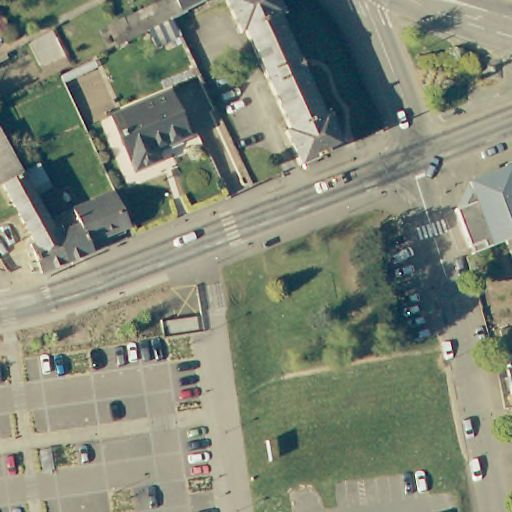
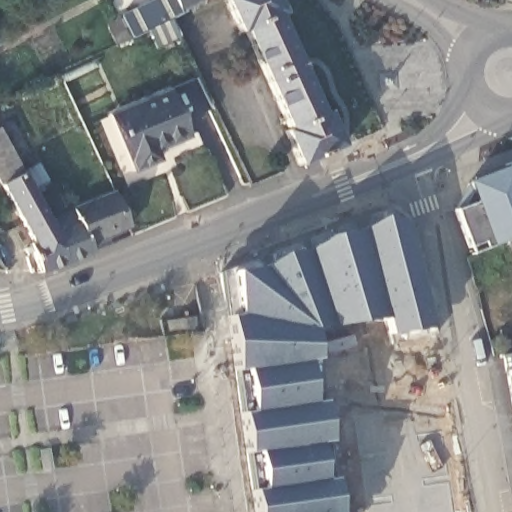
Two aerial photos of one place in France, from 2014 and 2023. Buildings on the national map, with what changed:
unchanged [(160,0),(199,0),(168,15),(113,43),(105,27),(160,0)]
unchanged [(283,116),(243,26),(239,28),(225,0),(276,0),(280,10),(275,13),(320,110),(325,109),(342,143),(299,163),(280,118),(283,116)]
unchanged [(168,90),(187,134),(155,149),(159,159),(135,169),(111,115),(168,90)]
unchanged [(32,246),(37,244),(0,172),(0,121),(51,218),(59,233),(65,248),(70,264),(45,274),(32,246)]
unchanged [(470,249),(454,200),(466,180),(502,166),(501,162),(512,158),(512,253),(505,235),(470,249)]
unchanged [(59,233),(51,218),(57,215),(59,219),(80,210),(80,209),(120,193),(136,229),(104,242),(101,237),(92,241),(97,254),(70,264),(65,248),(59,233)]
new [(306,254),(333,239),(362,232),(381,220),(403,225),(413,267),(417,280),(433,342),(392,348),(385,322),(367,325),(333,330),(312,333),(338,512),(255,512),(252,494),(262,492),(257,456),(247,457),(241,416),(235,374),(230,343),(227,319),(221,277),(260,271),(281,257),(306,254)]
unchanged [(512,404),(506,369),(512,367),(512,404)]
demolished [(230,428),(227,409),(240,407),(244,426),(230,428)]

